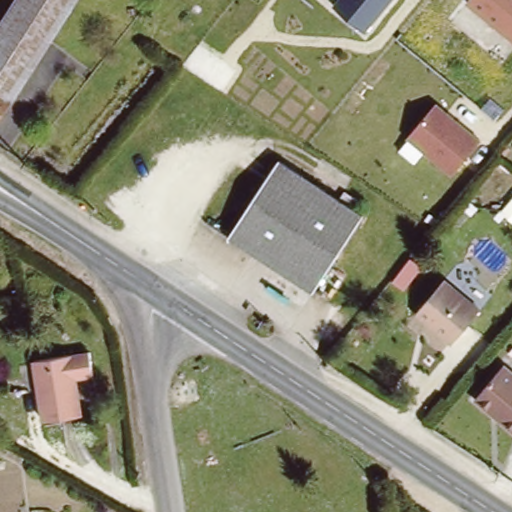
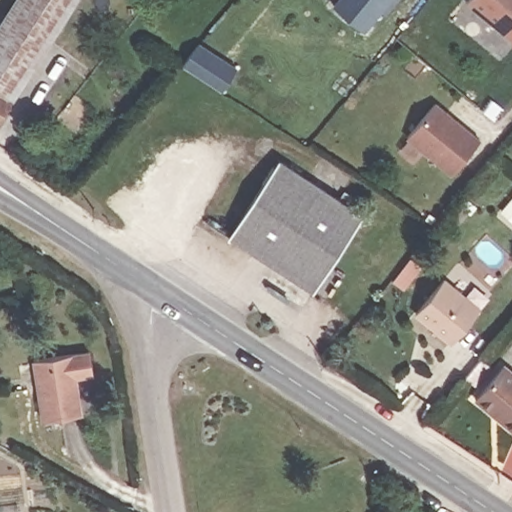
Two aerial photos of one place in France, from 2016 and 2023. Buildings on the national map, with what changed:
unchanged [(0,26),(17,0),(78,0),(36,64),(0,41),(0,26)]
unchanged [(362,30),(329,2),(331,0),(387,0),(362,30)]
unchanged [(465,1),(465,0),(512,0),(512,40),(465,1)]
unchanged [(0,120),(0,41),(36,64),(0,120)]
new [(201,42),(238,67),(223,90),(183,64),(201,42)]
unchanged [(484,140),(454,175),(405,134),(435,97),(484,140)]
unchanged [(260,193),(235,176),(257,143),(282,160),(368,216),(319,291),(232,235),(260,193)]
unchanged [(497,175),(512,188),(512,220),(509,224),(477,199),(497,175)]
unchanged [(482,312),(454,346),(417,315),(444,282),(482,312)]
unchanged [(36,357),(95,348),(99,373),(82,375),(86,410),(46,417),(36,357)]
unchanged [(512,367),(512,427),(474,396),(504,360),(512,367)]

